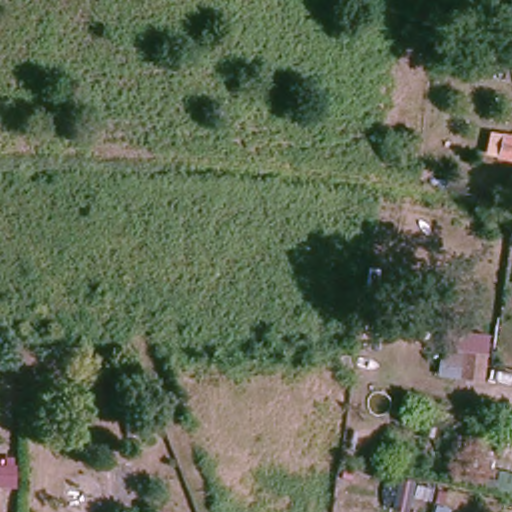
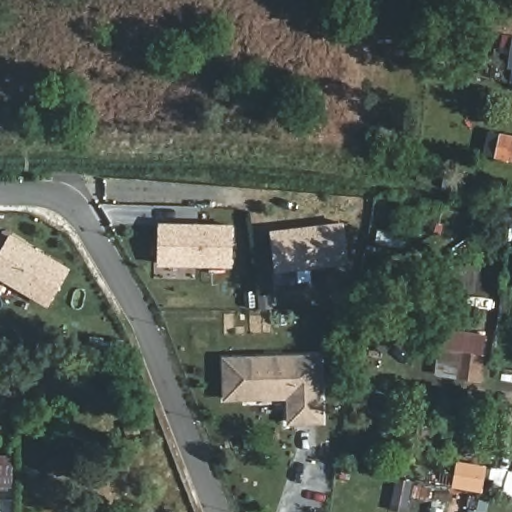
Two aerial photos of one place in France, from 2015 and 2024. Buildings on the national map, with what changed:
unchanged [(509,52),(512,53),(512,85),(503,83),(509,52)]
unchanged [(512,144),(512,163),(498,161),(501,130),(512,131),(511,144),(512,144)]
new [(348,223),(352,266),(278,274),(274,231),(348,223)]
new [(235,226),(235,269),(160,267),(162,225),(235,226)]
new [(72,272),(52,308),(0,278),(0,262),(12,237),(72,272)]
new [(324,423),(285,424),(283,400),(221,401),(221,357),(320,354),(324,423)]
unchanged [(453,384),(432,380),(437,355),(441,355),(457,359),(477,362),(476,371),(474,386),(453,384)]
new [(14,468),(14,488),(0,488),(0,468),(14,468)]

